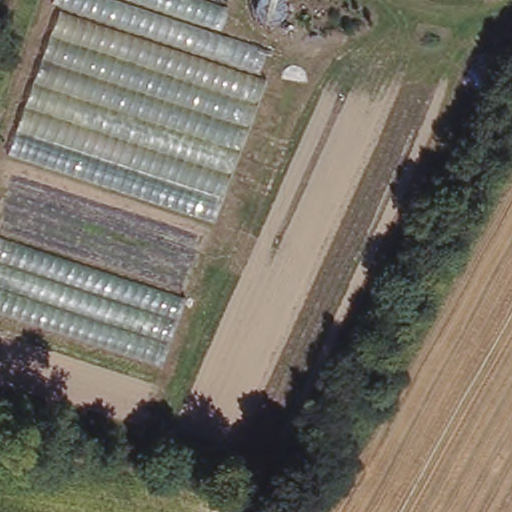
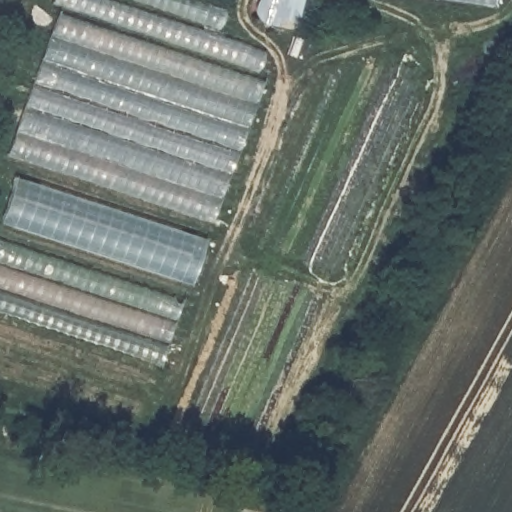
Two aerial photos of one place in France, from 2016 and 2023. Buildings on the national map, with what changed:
unchanged [(61,5),(53,3),(54,0),(207,0),(227,7),(220,33),(270,49),(259,77),(267,80),(215,222),(9,154),(61,5)]
new [(495,10),(428,0),(496,0),(495,10)]
new [(205,241),(189,287),(1,227),(18,177),(205,241)]
unchanged [(182,302),(163,365),(0,310),(0,239),(182,302)]

